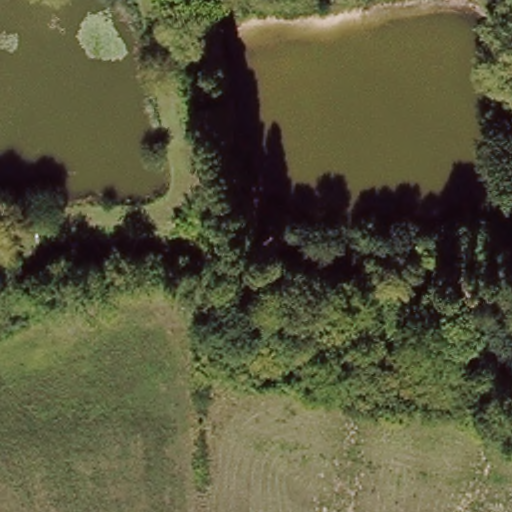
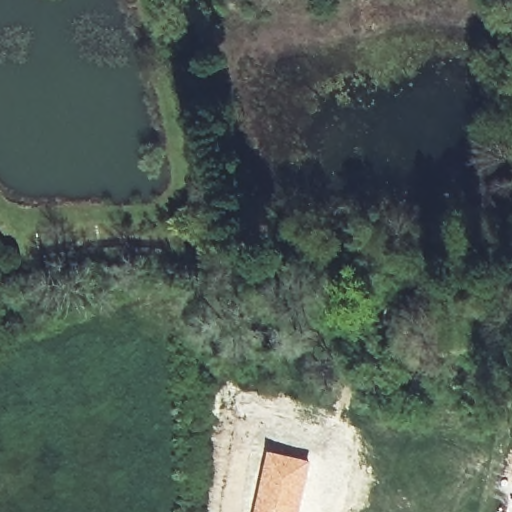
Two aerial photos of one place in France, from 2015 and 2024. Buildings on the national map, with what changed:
new [(268,450),(311,461),(298,512),(253,512),(268,450)]

